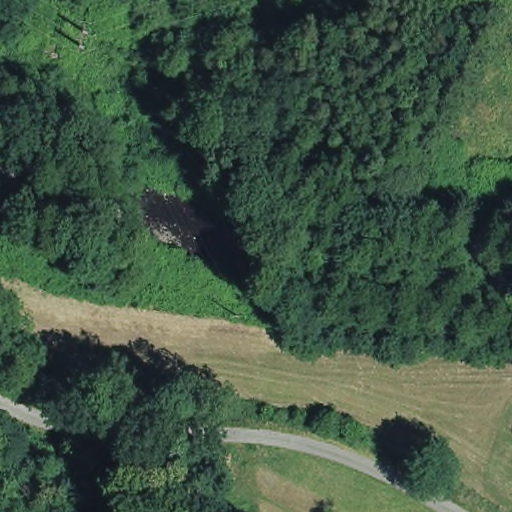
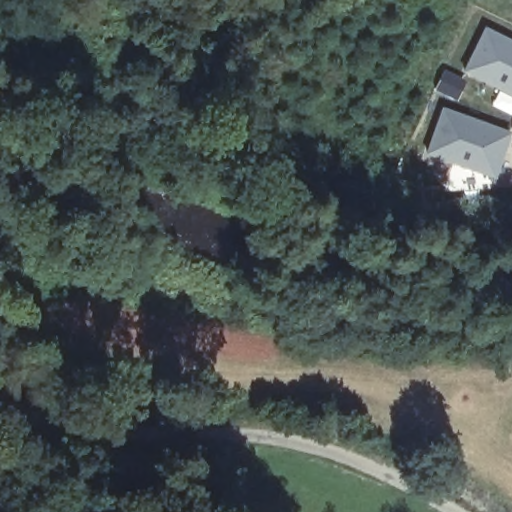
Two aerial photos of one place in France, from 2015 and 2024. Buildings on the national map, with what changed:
new [(512,95),(493,94),(460,77),(483,24),(512,36),(512,95)]
new [(508,132),(498,163),(472,175),(422,160),(440,110),(508,132)]

